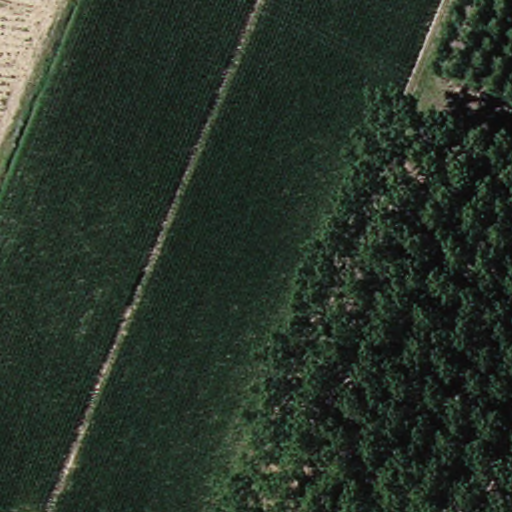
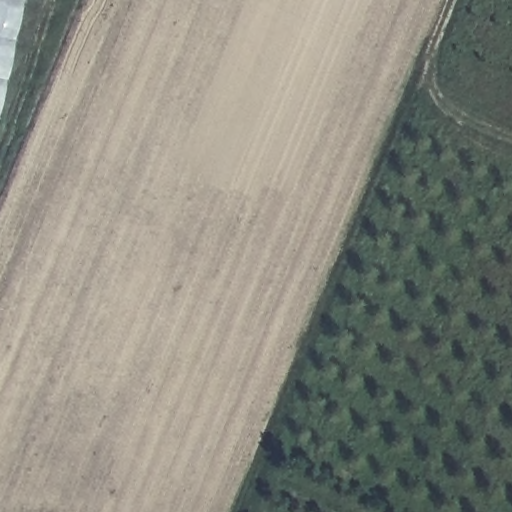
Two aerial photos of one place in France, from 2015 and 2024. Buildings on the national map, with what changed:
new [(0,95),(0,0),(21,0),(0,95)]

